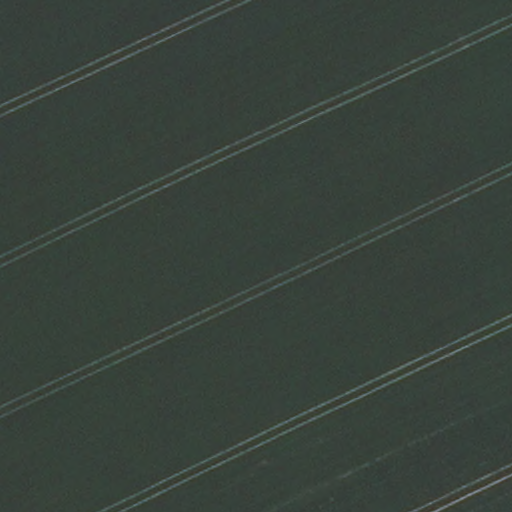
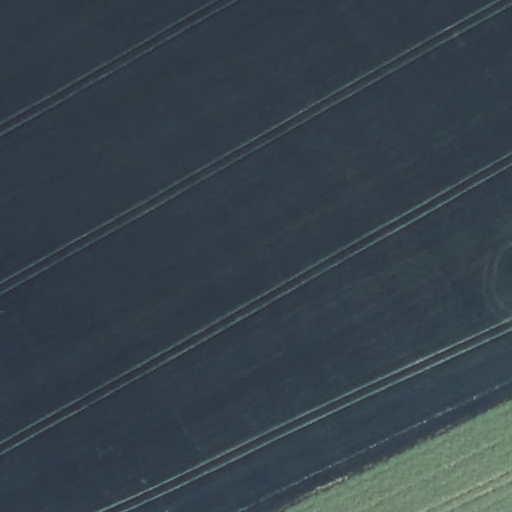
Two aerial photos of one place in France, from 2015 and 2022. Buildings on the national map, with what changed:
[]

